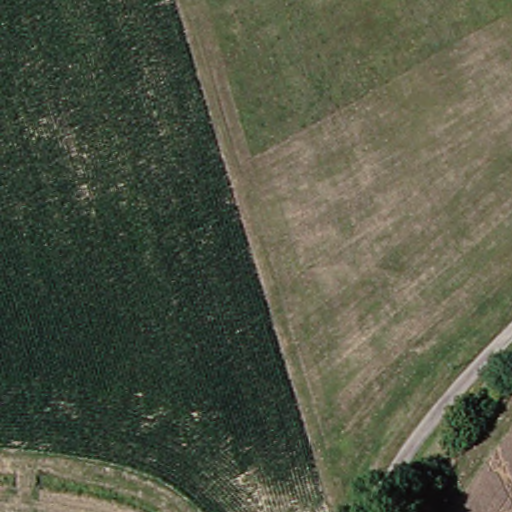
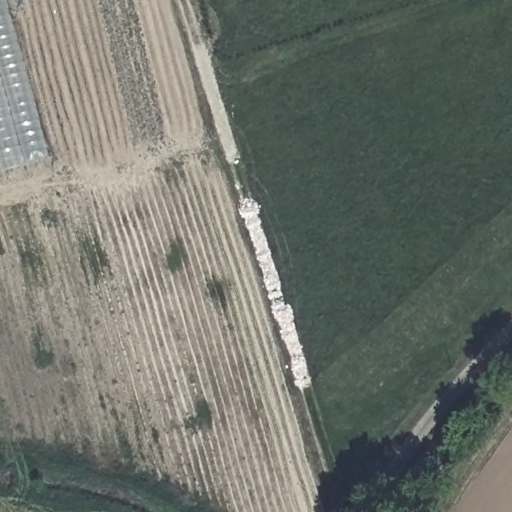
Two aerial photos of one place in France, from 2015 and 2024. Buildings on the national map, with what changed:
new [(0,0),(4,0),(47,156),(0,169),(0,0)]

